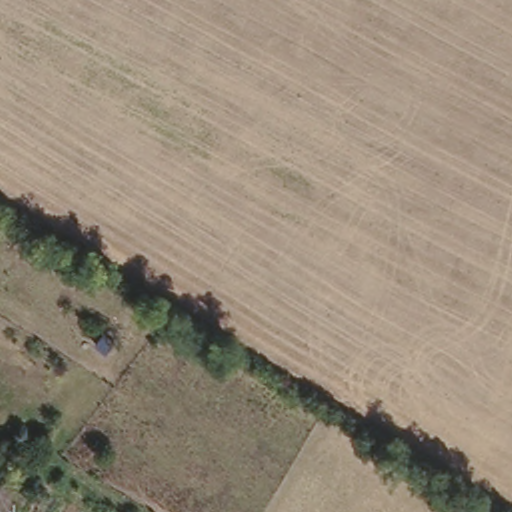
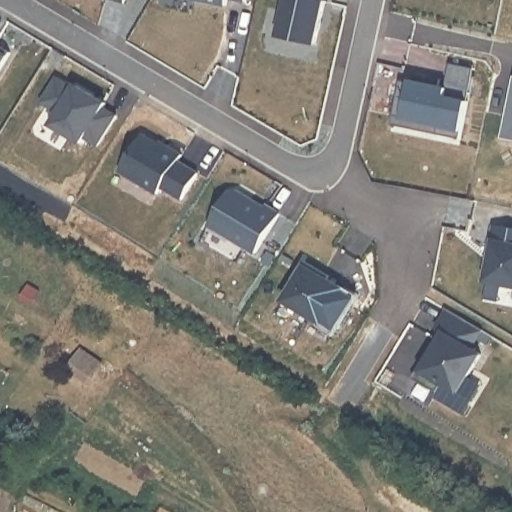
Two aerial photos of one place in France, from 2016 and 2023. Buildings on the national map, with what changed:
new [(107,0),(127,0),(125,6),(107,0)]
new [(195,0),(228,0),(226,6),(195,0)]
new [(230,0),(246,0),(245,3),(230,0)]
new [(279,41),(289,0),(322,0),(321,4),(326,6),(316,49),(279,41)]
new [(0,74),(0,47),(11,53),(0,74)]
new [(467,100),(461,131),(459,137),(393,122),(394,115),(404,116),(411,79),(446,85),(450,64),(473,68),(467,100)]
new [(73,88),(75,83),(107,102),(105,108),(118,115),(98,149),(85,140),(83,144),(51,123),(56,114),(40,105),(57,76),(73,88)]
new [(504,137),(512,91),(512,138),(504,137)]
new [(229,192),(237,190),(265,206),(267,204),(281,212),(257,253),(209,225),(229,192)]
new [(484,285),(489,259),(487,258),(492,231),(512,235),(512,291),(484,285)]
new [(488,267),(485,266),(487,258),(489,259),(488,267)]
new [(343,293),(342,295),(355,303),(336,333),(323,325),(322,327),(285,304),(296,286),(293,284),(304,265),(329,280),(327,284),(343,293)]
new [(420,367),(442,332),(433,328),(446,308),(483,331),(474,346),(484,353),(459,396),(439,384),(436,390),(415,376),(420,367)]

